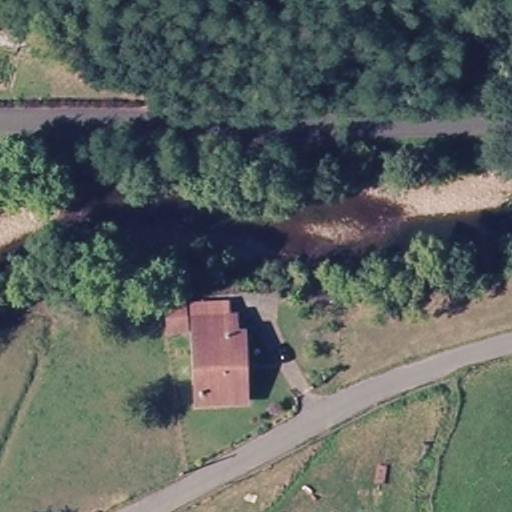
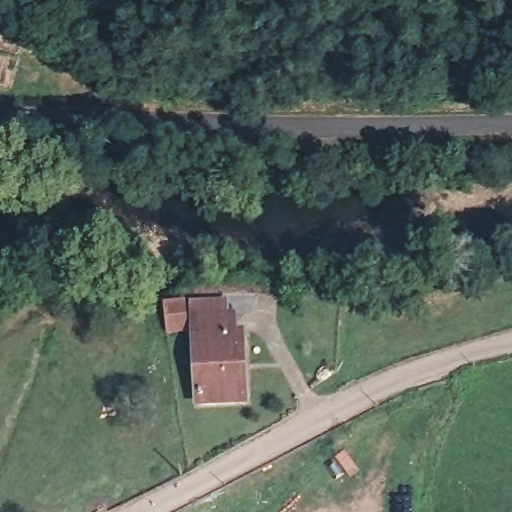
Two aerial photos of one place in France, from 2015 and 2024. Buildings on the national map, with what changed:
unchanged [(194,337),(170,340),(166,318),(190,314),(194,337)]
unchanged [(235,347),(245,348),(246,409),(204,410),(201,328),(234,327),(235,347)]

